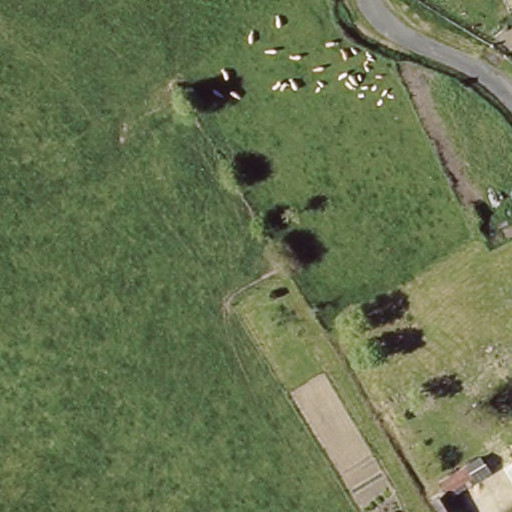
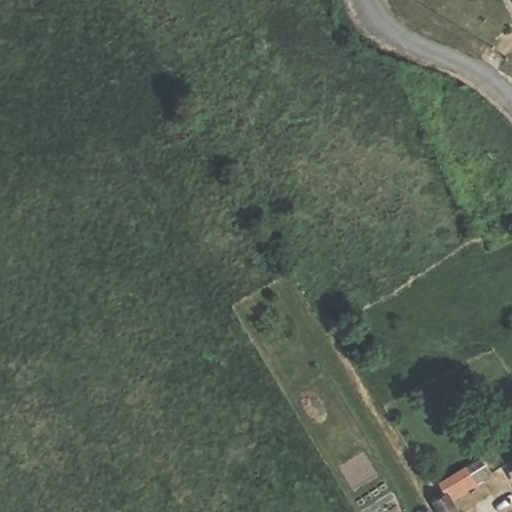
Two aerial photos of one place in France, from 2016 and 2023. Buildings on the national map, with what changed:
unchanged [(432,500),(444,492),(439,485),(480,458),(489,472),(450,498),(459,512),(440,512),(432,500)]
unchanged [(461,512),(459,512),(461,511),(461,512)]

